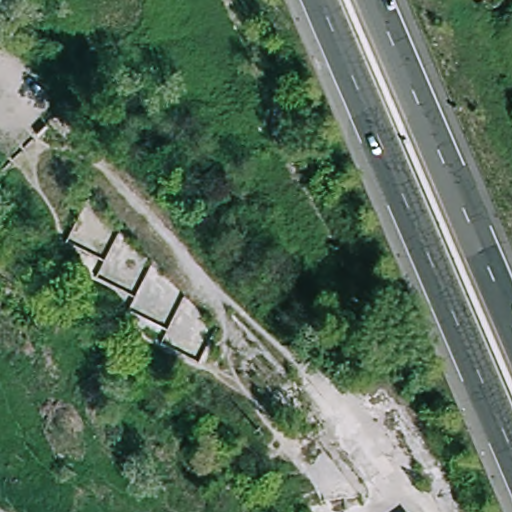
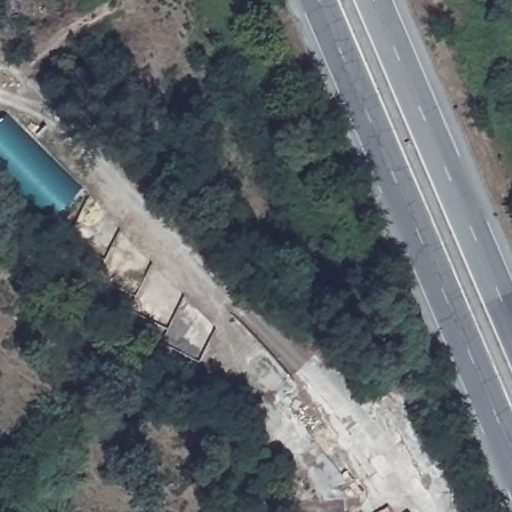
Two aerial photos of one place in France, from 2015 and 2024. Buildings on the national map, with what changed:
new [(5,113),(82,186),(48,222),(0,173),(0,118),(5,113)]

